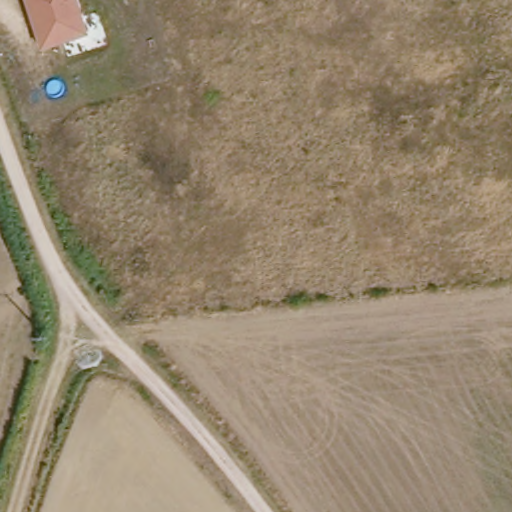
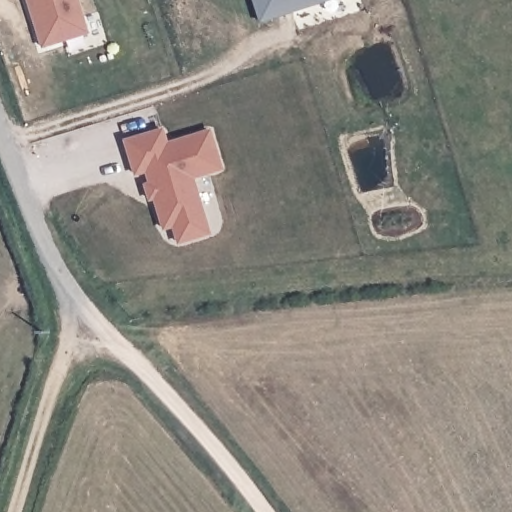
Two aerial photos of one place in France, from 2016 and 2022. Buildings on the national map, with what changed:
unchanged [(88,31),(41,49),(27,0),(79,0),(88,31)]
new [(259,23),(252,0),(333,0),(259,23)]
new [(177,245),(172,227),(161,230),(152,200),(148,202),(143,183),(146,182),(144,174),(133,177),(123,141),(164,128),(168,142),(211,129),(223,170),(193,178),(210,233),(177,245)]

